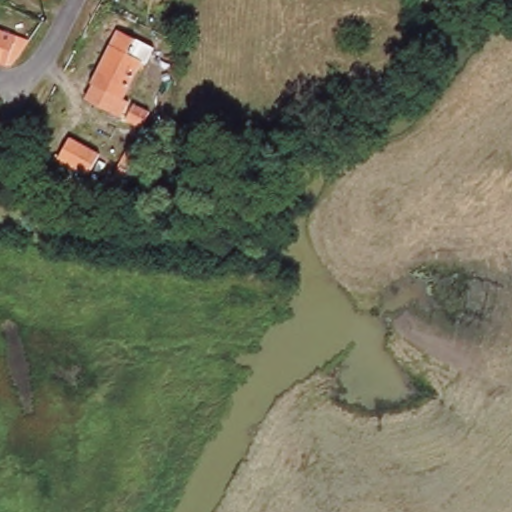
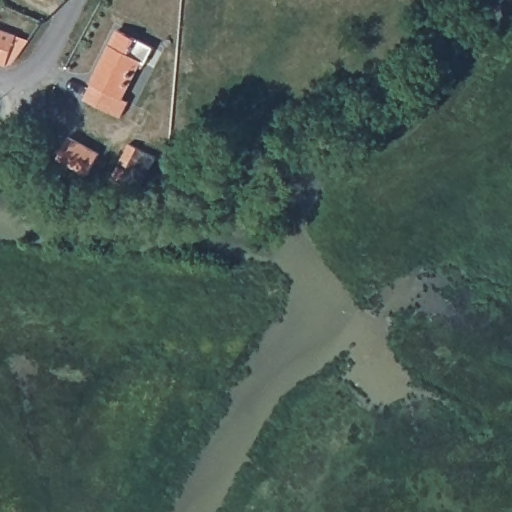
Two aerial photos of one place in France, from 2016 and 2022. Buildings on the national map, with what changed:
unchanged [(20,37),(9,67),(0,64),(0,30),(20,37)]
unchanged [(156,49),(146,70),(142,68),(125,101),(131,104),(123,119),(89,101),(96,87),(94,86),(121,32),(156,49)]
unchanged [(152,114),(144,129),(128,121),(136,106),(152,114)]
unchanged [(101,155),(89,176),(60,160),(71,139),(101,155)]
unchanged [(121,186),(113,182),(132,146),(139,150),(121,186)]

